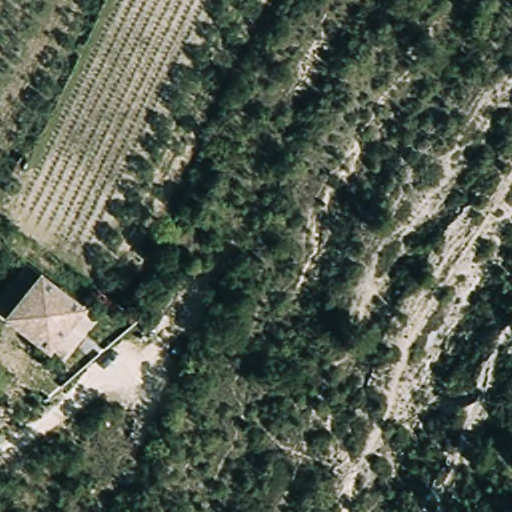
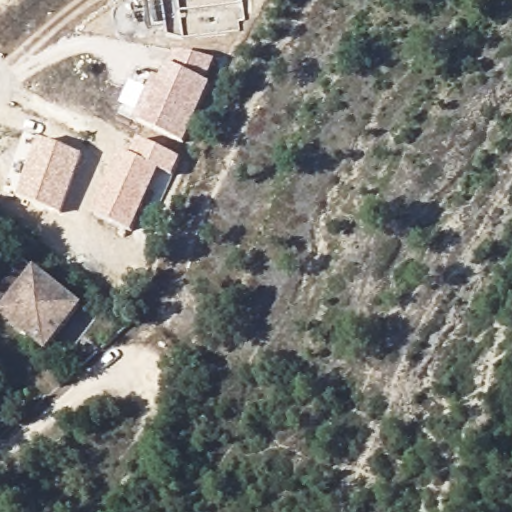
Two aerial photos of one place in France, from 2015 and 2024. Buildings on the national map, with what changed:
new [(235,18),(237,27),(181,35),(163,30),(160,0),(240,0),(242,16),(235,18)]
new [(162,81),(169,67),(166,66),(173,49),(213,59),(202,79),(210,83),(183,141),(135,119),(154,76),(162,81)]
new [(130,154),(138,138),(180,158),(172,175),(158,169),(130,230),(91,214),(120,151),(130,154)]
new [(83,154),(60,213),(18,196),(40,140),(83,154)]
unchanged [(7,320),(0,315),(0,301),(27,263),(40,273),(88,306),(55,353),(7,320)]

